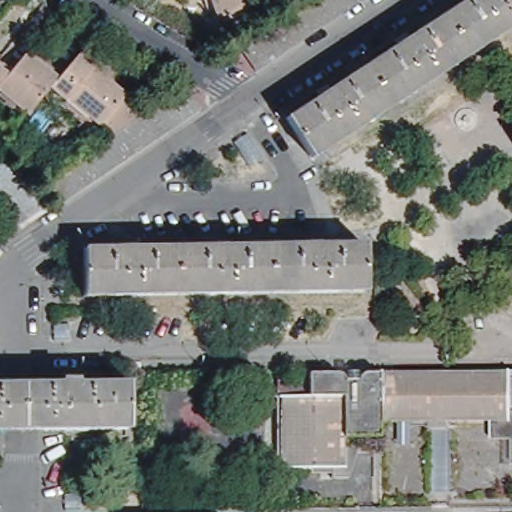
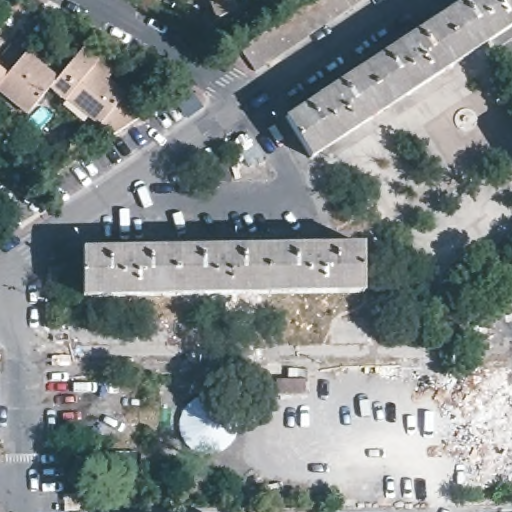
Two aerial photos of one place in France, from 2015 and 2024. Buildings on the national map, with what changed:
unchanged [(223,17),(216,0),(261,0),(263,4),(223,17)]
unchanged [(241,47),(312,0),(359,0),(256,70),(241,47)]
unchanged [(286,118),(320,95),(465,0),(512,0),(512,26),(311,158),(286,118)]
unchanged [(113,134),(68,96),(65,99),(49,85),(59,74),(81,47),(96,59),(98,58),(99,59),(99,60),(98,61),(99,64),(101,65),(103,64),(104,62),(108,57),(118,66),(107,79),(124,94),(121,99),(140,115),(113,134)]
unchanged [(28,112),(0,89),(0,82),(9,72),(24,53),(42,68),(46,64),(59,74),(49,85),(28,112)]
unchanged [(0,64),(9,72),(0,82),(0,64)]
unchanged [(200,108),(58,203),(43,180),(113,134),(140,115),(184,85),(200,108)]
unchanged [(369,286),(88,291),(88,266),(88,244),(315,240),(369,240),(369,286)]
demolished [(376,368),(379,368),(379,365),(382,365),(382,368),(509,367),(512,367),(512,384),(512,431),(493,431),(493,415),(379,413),(379,423),(344,423),(344,460),(343,461),(278,462),(278,459),(279,458),(279,393),(277,394),(277,377),(308,376),(376,374),(376,368)]
demolished [(133,383),(136,383),(136,426),(136,427),(136,428),(135,428),(57,429),(56,384),(70,383),(70,380),(84,380),(84,383),(133,383)]
demolished [(6,430),(0,430),(0,384),(6,384),(6,430)]
demolished [(56,384),(57,429),(53,429),(14,430),(6,430),(6,384),(56,384)]
demolished [(211,392),(226,392),(226,407),(210,407),(211,392)]

